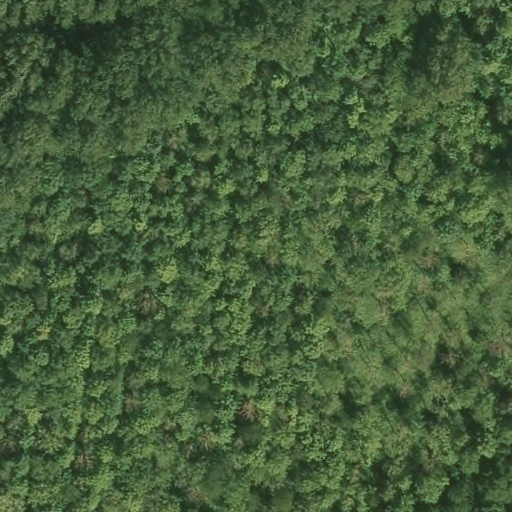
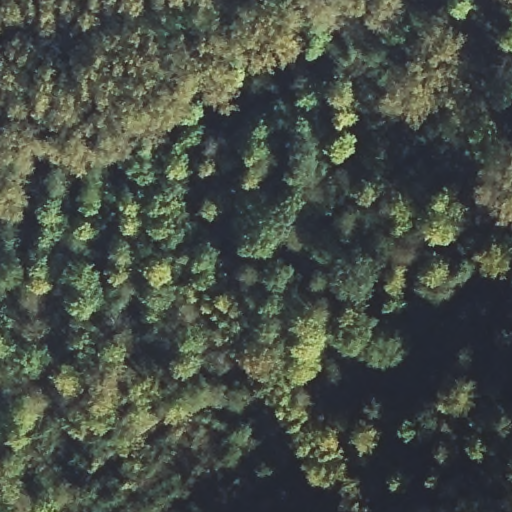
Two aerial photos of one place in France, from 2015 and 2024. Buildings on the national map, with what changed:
[]

